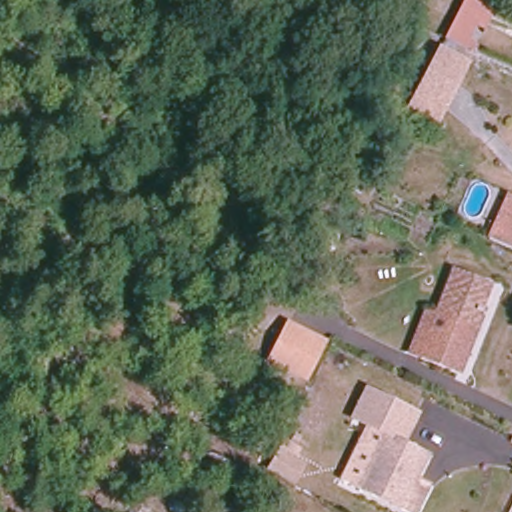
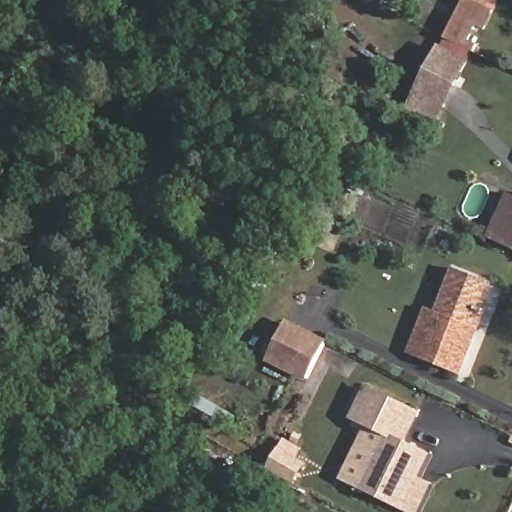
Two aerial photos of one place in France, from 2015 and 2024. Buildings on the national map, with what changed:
unchanged [(484,17),(474,36),(467,32),(459,48),(465,51),(464,56),(444,48),(437,44),(450,19),(458,4),(484,17)]
unchanged [(444,48),(464,56),(471,60),(444,111),(453,116),(444,131),(434,128),(432,134),(419,126),(427,111),(416,104),(444,48)]
unchanged [(487,241),(510,192),(512,192),(512,253),(487,241)]
unchanged [(427,306),(442,313),(464,267),(497,284),(455,376),(419,359),(405,352),(427,306)]
unchanged [(308,383),(264,361),(284,318),(329,340),(308,383)]
unchanged [(406,440),(430,452),(418,480),(433,487),(420,512),(410,512),(348,484),(361,455),(369,458),(382,433),(350,417),(367,386),(421,412),(406,440)]
unchanged [(294,488),(264,471),(278,444),(308,460),(294,488)]

